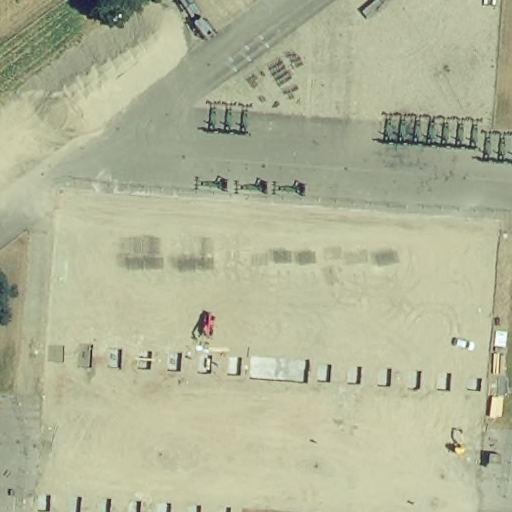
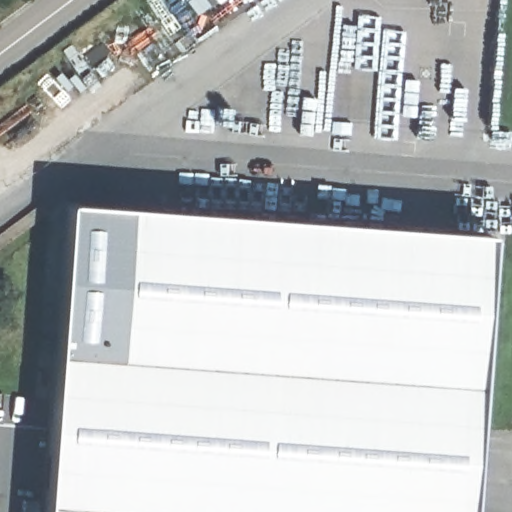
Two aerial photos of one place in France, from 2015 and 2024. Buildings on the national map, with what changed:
new [(43,512),(65,203),(490,234),(468,512),(43,512)]
demolished [(427,352),(480,355),(470,428),(423,426),(427,352)]

